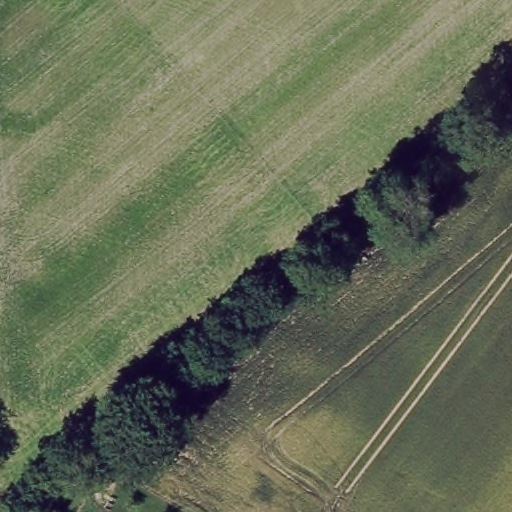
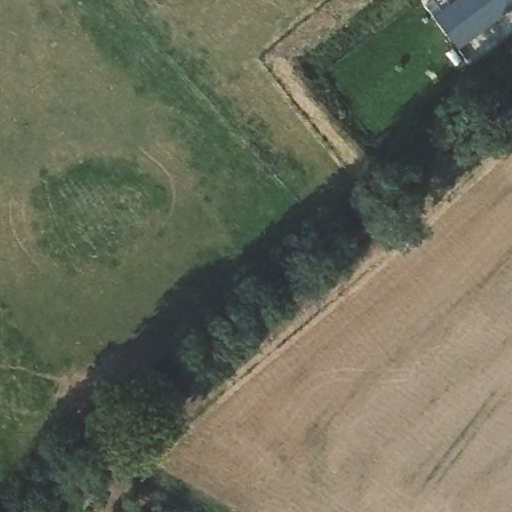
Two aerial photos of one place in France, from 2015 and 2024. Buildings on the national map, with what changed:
new [(434,16),(456,0),(512,0),(512,4),(457,46),(434,16)]

